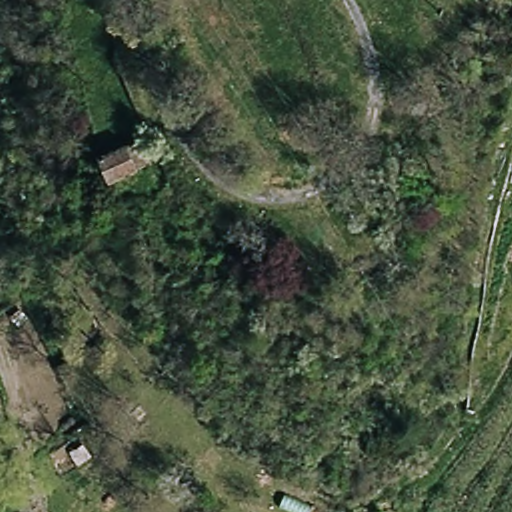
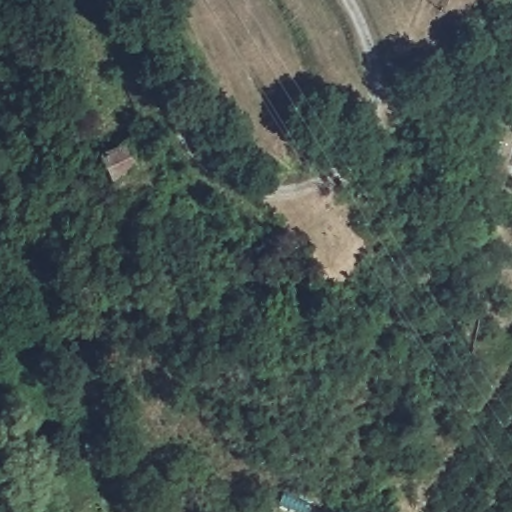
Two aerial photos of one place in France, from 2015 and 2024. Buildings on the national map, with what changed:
unchanged [(144,164),(134,169),(116,176),(106,150),(134,139),(144,164)]
unchanged [(156,229),(142,237),(134,222),(150,215),(156,229)]

